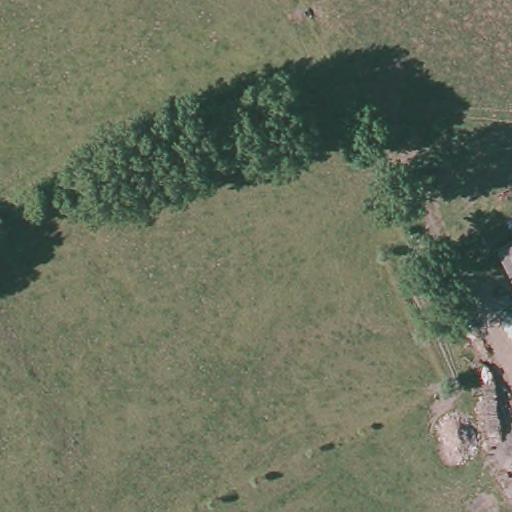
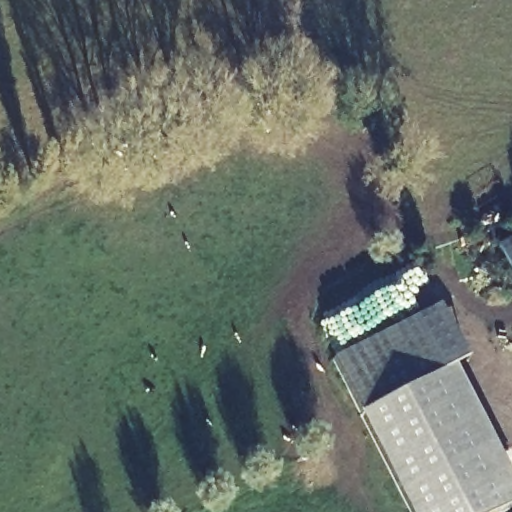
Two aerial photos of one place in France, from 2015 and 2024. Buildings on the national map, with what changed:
unchanged [(504,259),(512,255),(512,276),(504,259)]
new [(442,302),(470,357),(442,371),(510,506),(498,512),(412,512),(334,356),(442,302)]

